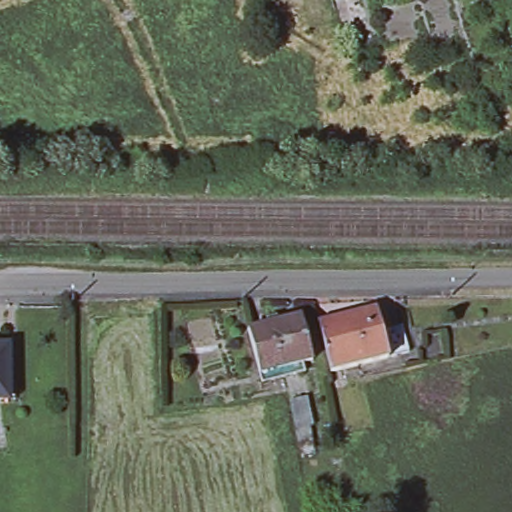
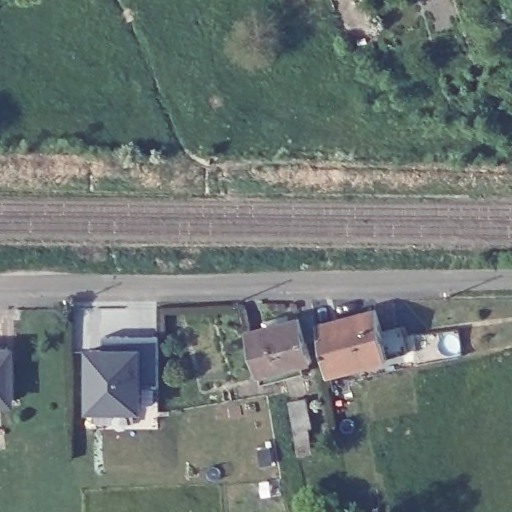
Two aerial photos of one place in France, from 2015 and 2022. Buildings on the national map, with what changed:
unchanged [(406,355),(385,360),(327,376),(315,336),(313,326),(340,320),(372,311),(378,333),(399,328),(406,355)]
unchanged [(257,386),(255,379),(244,335),(297,320),(308,365),(299,367),(300,375),(257,386)]
new [(87,346),(105,346),(105,334),(159,335),(160,385),(144,385),(144,410),(87,411),(87,346)]
unchanged [(14,399),(4,399),(0,399),(0,346),(7,345),(8,369),(13,369),(14,399)]
unchanged [(314,428),(295,432),(290,401),(308,398),(314,428)]

